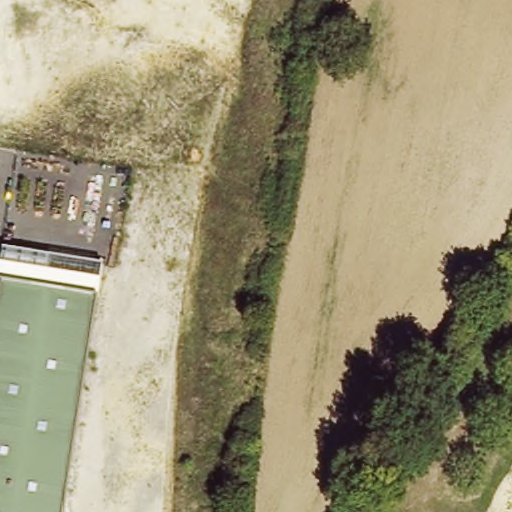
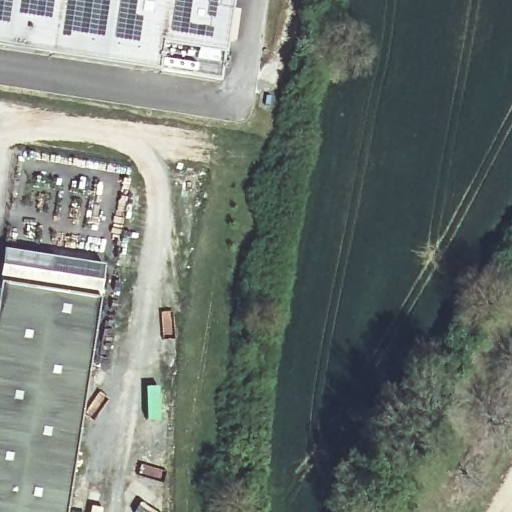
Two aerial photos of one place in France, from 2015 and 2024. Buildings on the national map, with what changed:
new [(0,0),(232,0),(224,54),(220,80),(156,70),(0,46),(0,0)]
unchanged [(8,248),(103,264),(97,300),(65,512),(0,512),(0,291),(1,285),(8,248)]

